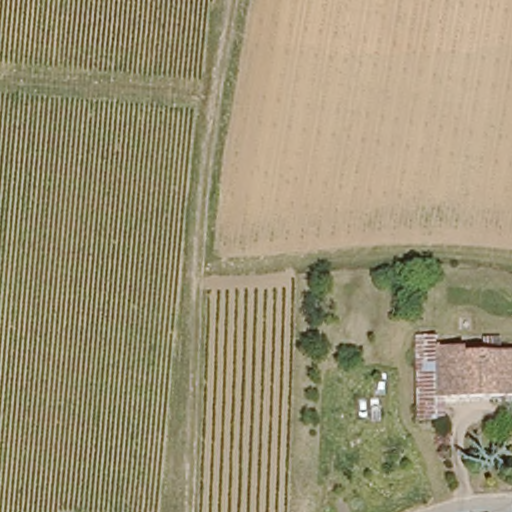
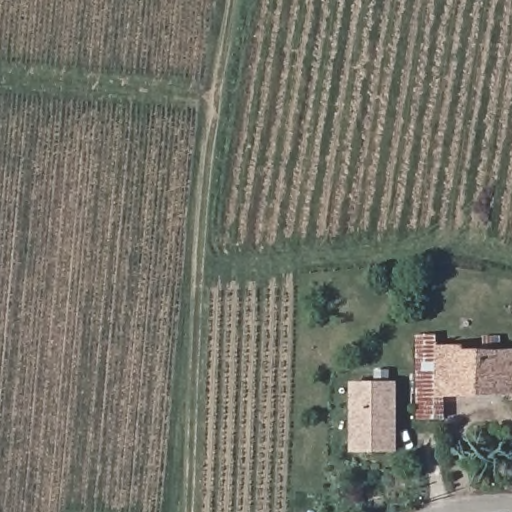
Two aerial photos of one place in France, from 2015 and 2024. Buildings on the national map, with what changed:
unchanged [(415,336),(439,336),(439,345),(440,396),(449,396),(449,416),(415,416),(416,367),(415,336)]
unchanged [(440,396),(439,345),(473,345),(473,348),(488,348),(488,337),(504,337),(504,347),(512,347),(512,396),(449,396),(440,396)]
new [(349,382),(396,382),(396,454),(349,454),(349,382)]

